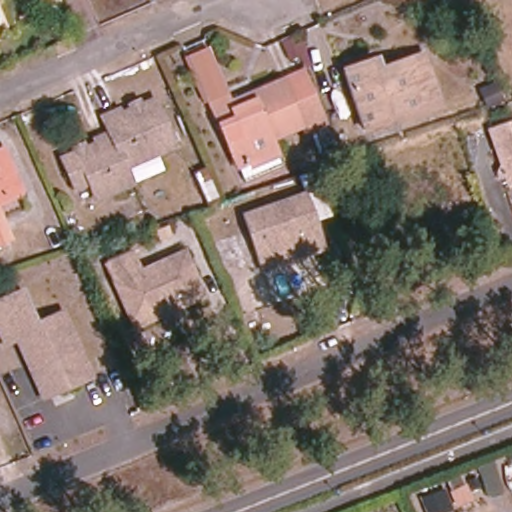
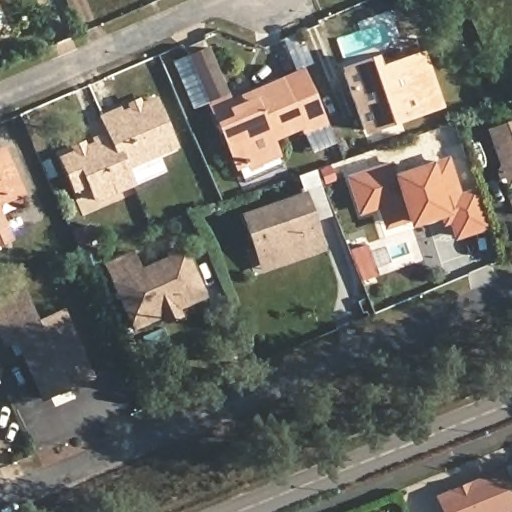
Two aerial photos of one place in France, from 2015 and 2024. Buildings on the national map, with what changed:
unchanged [(237,110),(260,101),(257,95),(286,81),(288,85),(309,76),(325,114),(304,123),(306,127),(276,140),(282,156),(256,167),(255,164),(242,169),(225,125),(214,101),(214,102),(194,56),(212,49),(231,94),(230,94),(235,105),(237,110)]
unchanged [(366,130),(346,72),(374,62),(378,72),(422,57),(438,105),(366,130)]
unchanged [(171,139),(175,147),(125,169),(131,185),(96,200),(89,184),(75,190),(72,181),(62,160),(97,145),(95,140),(109,134),(104,122),(102,117),(117,111),(119,116),(155,101),(171,139)]
unchanged [(500,170),(488,136),(512,128),(512,188),(507,190),(500,170)]
unchanged [(7,145),(22,181),(0,191),(0,147),(7,145)]
new [(459,195),(478,189),(490,222),(458,232),(453,216),(447,219),(443,208),(412,219),(406,201),(383,209),(380,197),(361,204),(352,176),(390,164),(394,176),(447,159),(459,195)]
new [(383,209),(406,201),(412,219),(431,212),(433,220),(387,235),(377,206),(363,211),(361,204),(380,197),(383,209)]
unchanged [(261,275),(257,268),(241,223),(302,200),(315,236),(321,254),(261,275)]
unchanged [(9,228),(0,232),(0,207),(9,228)]
unchanged [(170,310),(173,317),(160,323),(157,315),(129,328),(126,322),(101,267),(127,255),(135,274),(179,255),(195,291),(195,292),(197,297),(170,310)]
unchanged [(35,325),(60,314),(89,380),(41,400),(14,340),(2,345),(0,341),(0,301),(20,292),(35,325)]
new [(439,501),(501,475),(512,502),(512,507),(501,512),(443,512),(439,501)]

